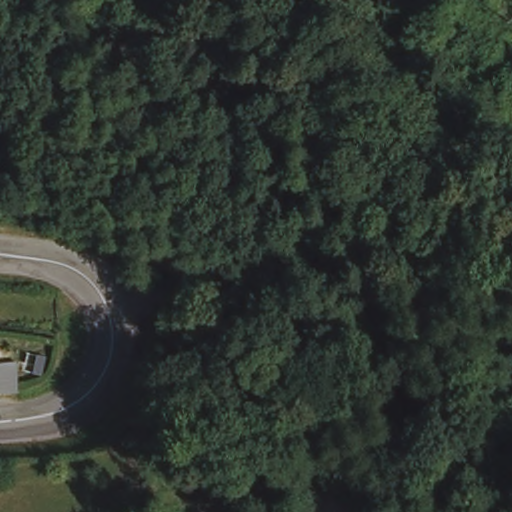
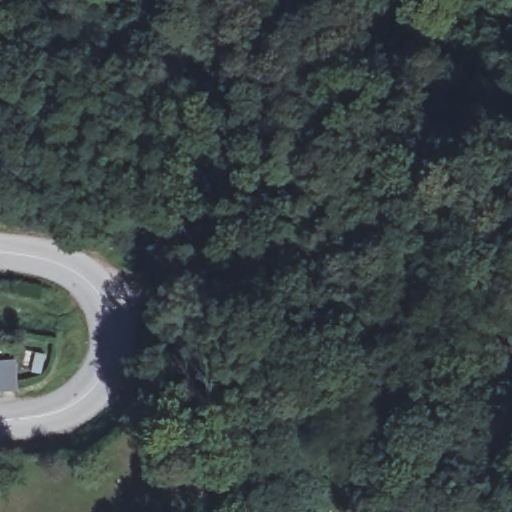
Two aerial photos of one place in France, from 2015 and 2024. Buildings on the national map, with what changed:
unchanged [(14,385),(0,387),(0,356),(10,355),(14,385)]

